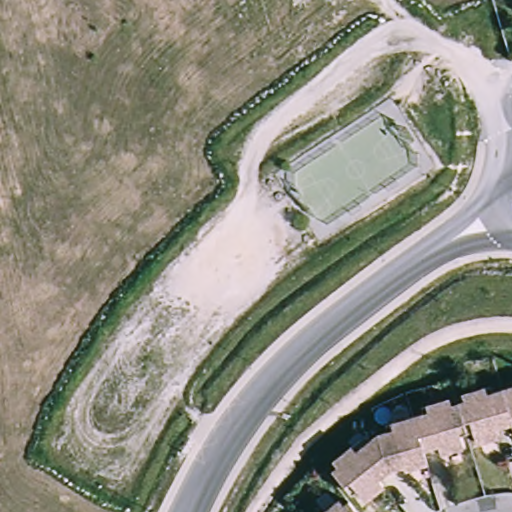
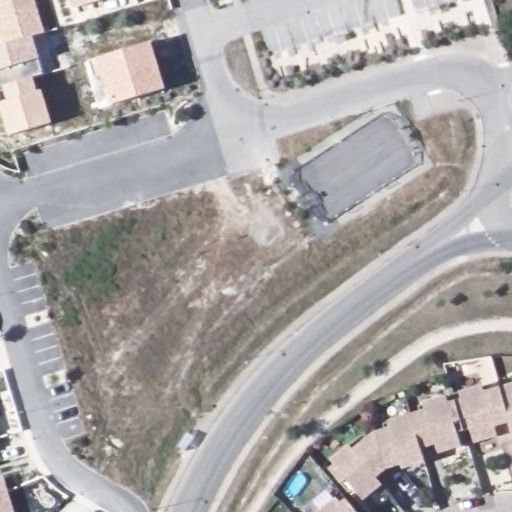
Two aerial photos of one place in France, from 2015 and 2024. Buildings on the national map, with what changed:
new [(9,136),(0,106),(0,102),(8,100),(5,90),(0,90),(0,46),(4,45),(0,30),(0,0),(36,0),(46,34),(34,37),(40,59),(44,74),(34,77),(38,91),(43,91),(52,123),(9,136)]
new [(74,9),(71,0),(104,0),(74,9)]
new [(151,41),(166,88),(113,105),(103,76),(95,79),(90,61),(98,57),(151,41)]
unchanged [(460,394),(459,387),(482,381),(484,391),(498,387),(508,425),(494,429),(497,438),(474,444),(469,427),(463,428),(453,396),(460,394)]
unchanged [(512,384),(512,440),(508,425),(498,387),(512,384)]
unchanged [(424,410),(421,400),(444,392),(446,398),(453,396),(463,428),(456,430),(462,447),(439,455),(436,446),(422,451),(409,414),(424,410)]
unchanged [(389,427),(387,420),(409,414),(422,451),(406,462),(384,468),(374,431),(389,427)]
unchanged [(349,443),(354,448),(374,431),(384,468),(371,480),(377,487),(359,502),(330,468),(335,464),(331,458),(349,443)]
new [(16,512),(0,512),(0,479),(4,478),(16,512)]
unchanged [(346,510),(351,505),(357,512),(333,512),(342,505),(346,510)]

